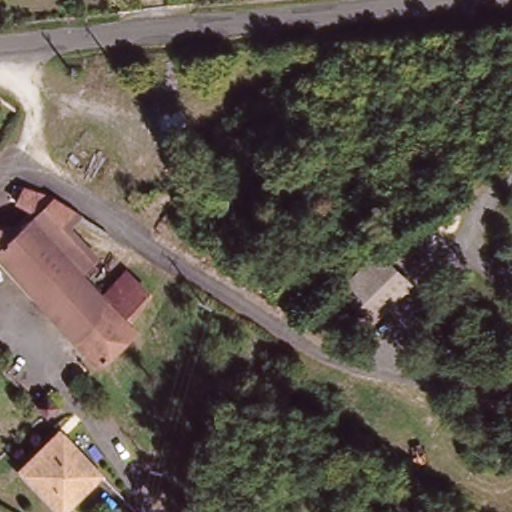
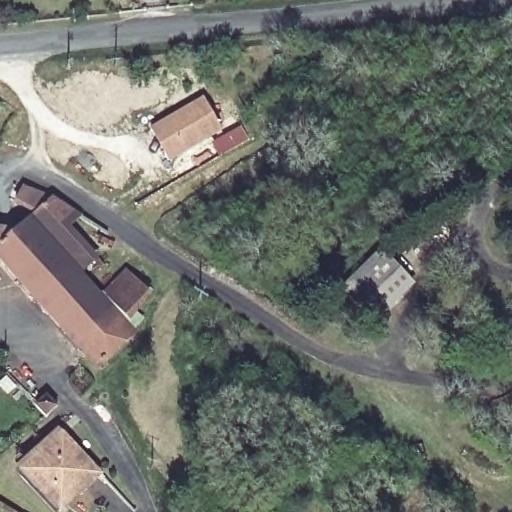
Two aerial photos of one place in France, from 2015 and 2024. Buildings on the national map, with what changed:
new [(203,98),(221,127),(182,150),(167,159),(150,130),(165,120),(203,98)]
unchanged [(30,226),(43,211),(9,197),(17,186),(52,202),(68,212),(62,220),(100,260),(80,280),(66,265),(31,302),(0,269),(0,243),(9,246),(30,226)]
unchanged [(408,285),(371,325),(344,300),(382,260),(408,285)]
unchanged [(73,346),(31,302),(66,265),(92,293),(109,312),(73,346)]
unchanged [(126,321),(113,306),(134,283),(147,297),(126,321)]
unchanged [(95,370),(73,346),(109,312),(131,335),(95,370)]
unchanged [(70,375),(81,366),(88,377),(79,386),(70,375)]
unchanged [(35,406),(46,398),(57,411),(49,420),(35,406)]
unchanged [(63,445),(102,484),(73,512),(66,512),(31,475),(63,445)]

